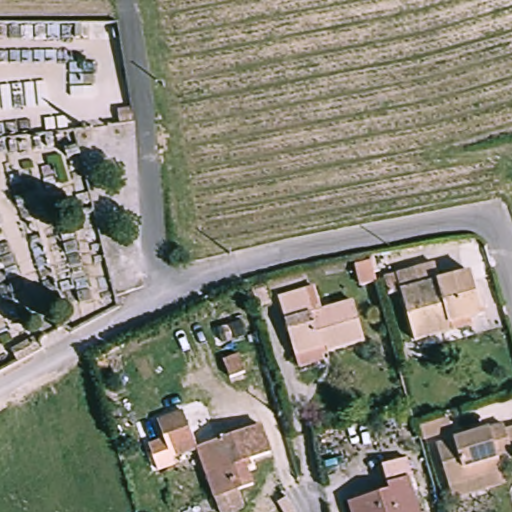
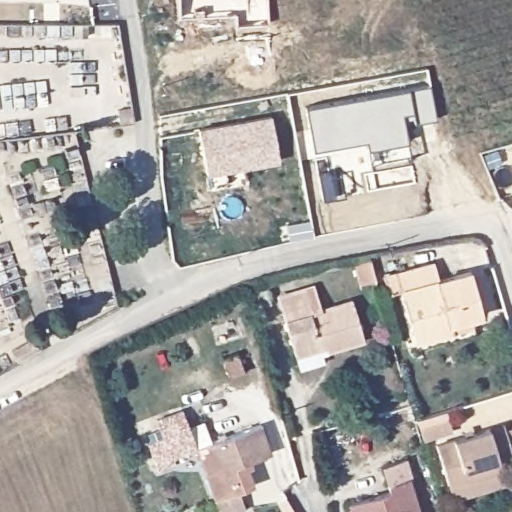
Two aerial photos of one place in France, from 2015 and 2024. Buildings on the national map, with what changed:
new [(266,35),(235,37),(233,11),(179,15),(178,0),(266,0),(266,35)]
new [(428,83),(434,116),(403,120),(409,157),(368,164),(365,139),(311,149),(305,105),(428,83)]
new [(279,159),(205,173),(198,126),(271,113),(279,159)]
unchanged [(431,263),(435,279),(466,272),(476,316),(445,323),(447,332),(410,340),(394,272),(431,263)]
unchanged [(311,284),(317,306),(350,299),(360,341),(325,349),(323,344),(292,351),(276,292),(311,284)]
unchanged [(207,354),(222,350),(228,367),(212,372),(207,354)]
unchanged [(168,454),(156,416),(183,409),(195,446),(168,454)]
unchanged [(507,451),(493,455),(496,468),(443,483),(432,442),(499,422),(507,451)]
unchanged [(217,512),(212,498),(195,446),(260,426),(268,455),(242,462),(249,487),(236,491),(241,506),(222,512),(217,512)]
unchanged [(388,488),(386,481),(406,475),(417,512),(351,512),(347,501),(388,488)]

